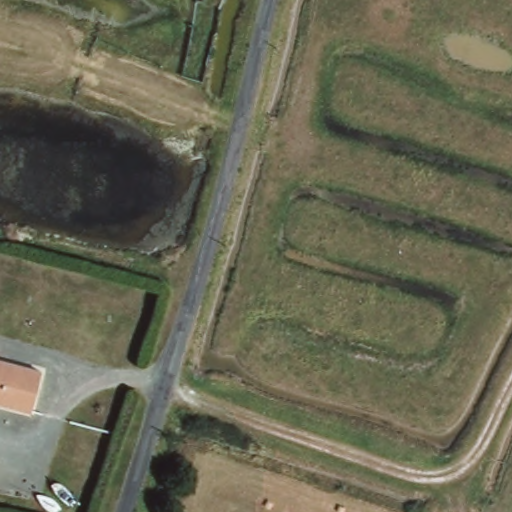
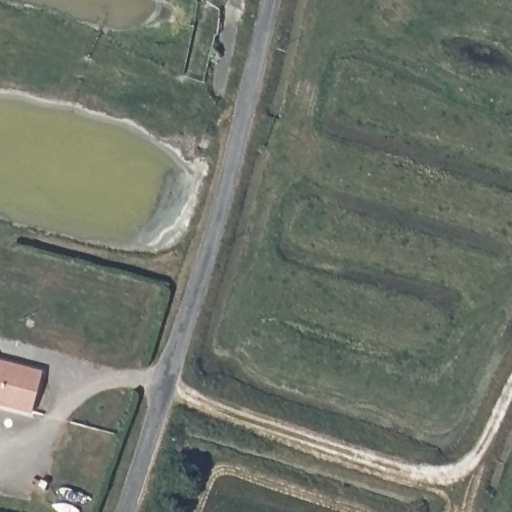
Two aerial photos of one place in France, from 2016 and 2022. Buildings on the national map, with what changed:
unchanged [(32,412),(0,404),(0,364),(43,373),(32,412)]

